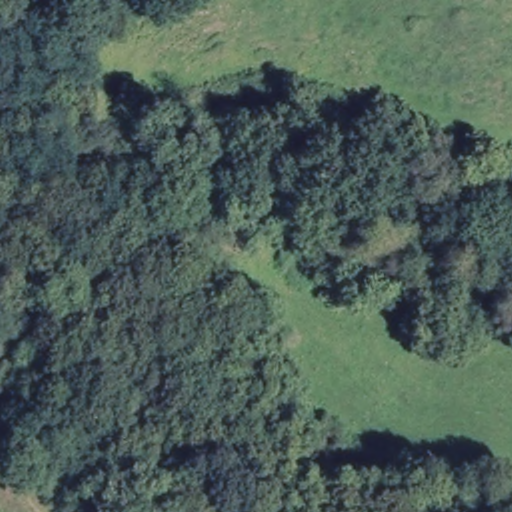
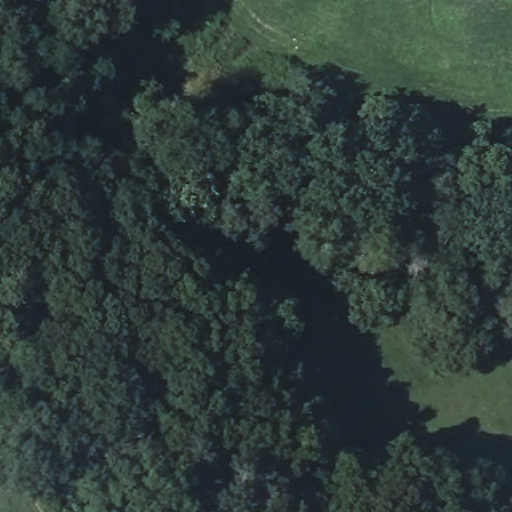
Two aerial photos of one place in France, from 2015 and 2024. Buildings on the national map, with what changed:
[]

